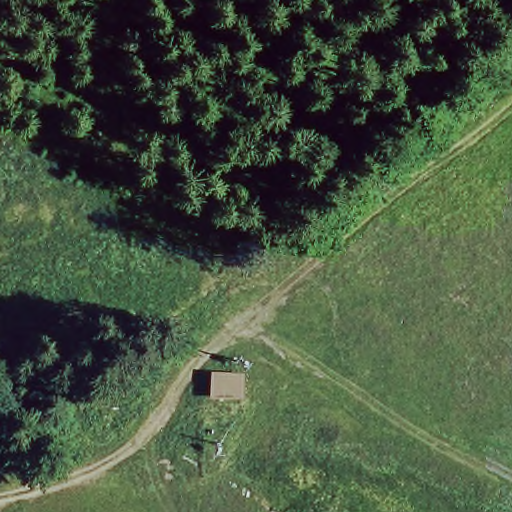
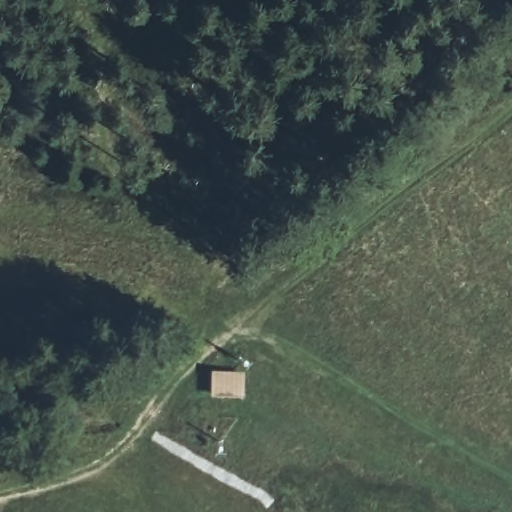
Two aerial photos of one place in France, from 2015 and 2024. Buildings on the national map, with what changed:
unchanged [(242,368),(242,393),(210,394),(210,367),(242,368)]

